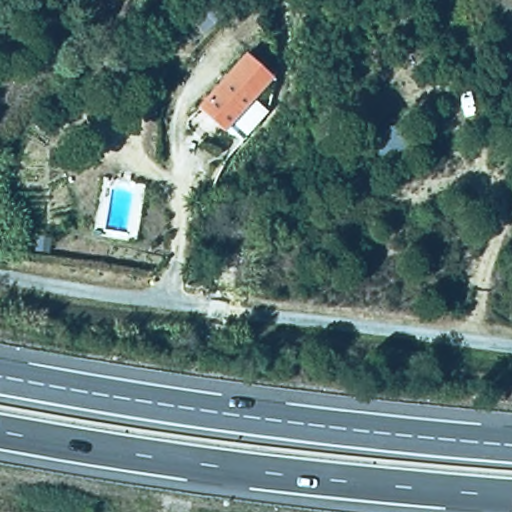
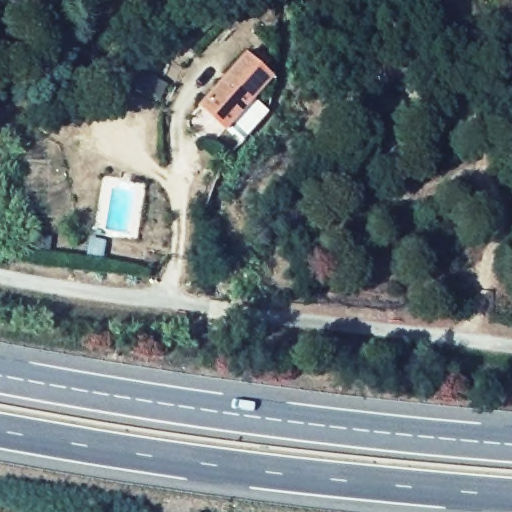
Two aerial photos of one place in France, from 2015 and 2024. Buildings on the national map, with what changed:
unchanged [(227,137),(195,109),(245,55),(275,84),(227,137)]

